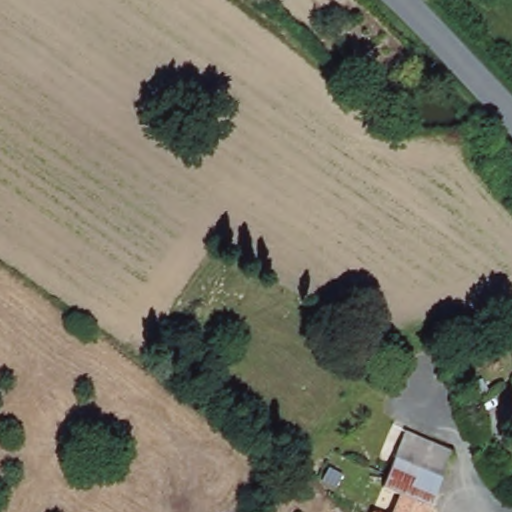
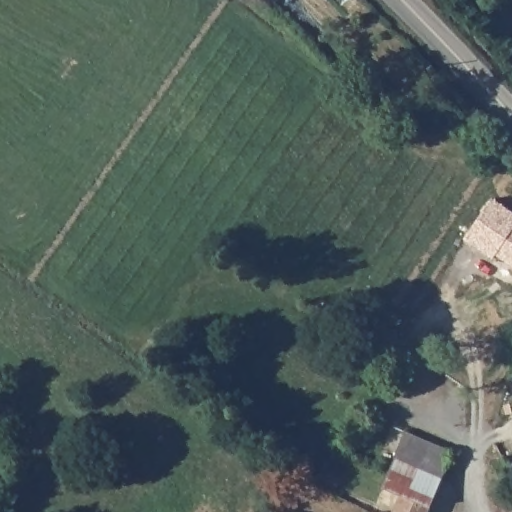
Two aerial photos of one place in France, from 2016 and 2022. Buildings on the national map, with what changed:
new [(493,198),(512,211),(512,264),(497,254),(494,258),(465,238),(493,198)]
unchanged [(457,452),(433,512),(380,512),(412,433),(457,452)]

